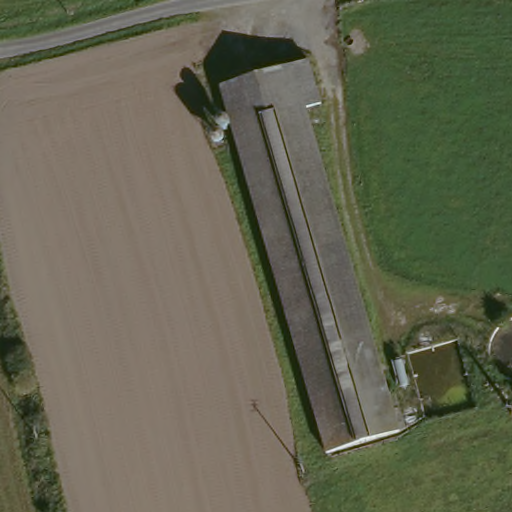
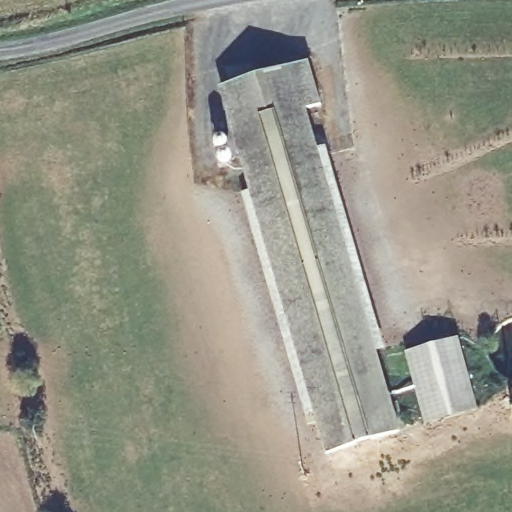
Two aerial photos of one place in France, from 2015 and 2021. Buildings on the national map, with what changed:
unchanged [(331,104),(316,108),(398,437),(327,455),(230,84),(320,61),(331,104)]
new [(458,337),(480,412),(426,427),(405,352),(458,337)]

